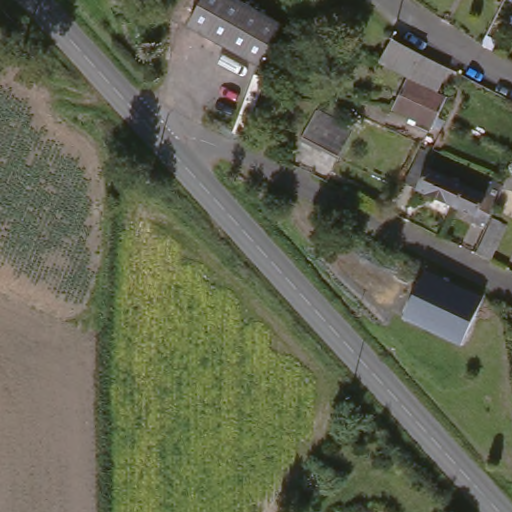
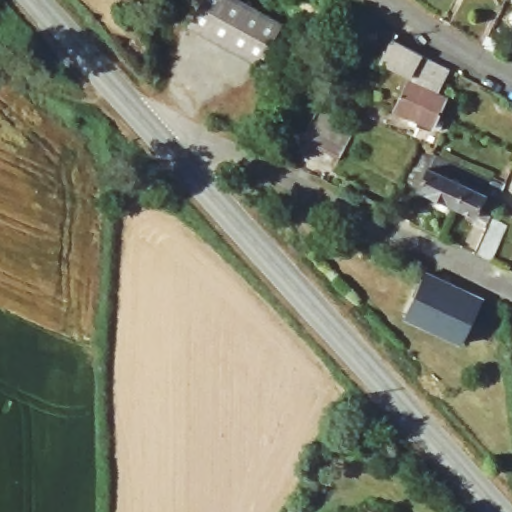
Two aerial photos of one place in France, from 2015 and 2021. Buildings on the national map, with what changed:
unchanged [(278,30),(256,69),(184,27),(200,0),(224,0),(278,30)]
unchanged [(436,95),(446,101),(430,131),(393,112),(406,80),(379,65),(391,42),(446,70),(436,95)]
unchanged [(301,140),(317,112),(352,131),(338,159),(301,140)]
unchanged [(463,214),(443,205),(393,181),(408,148),(431,159),(428,172),(453,184),(467,190),(474,194),(480,181),(491,187),(478,212),(466,207),(463,214)]
unchanged [(476,257),(464,251),(479,221),(491,226),(476,257)]
unchanged [(423,270),(484,298),(463,345),(403,317),(423,270)]

